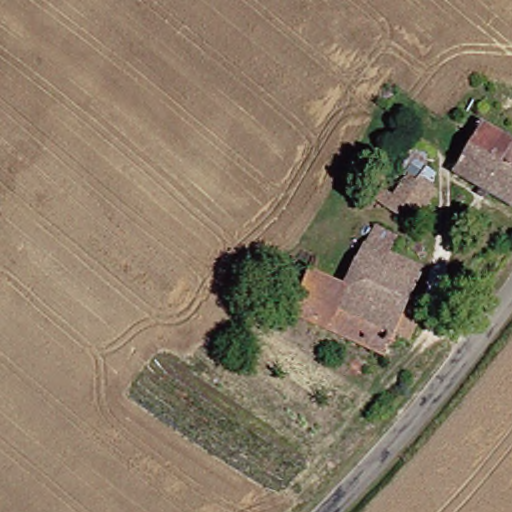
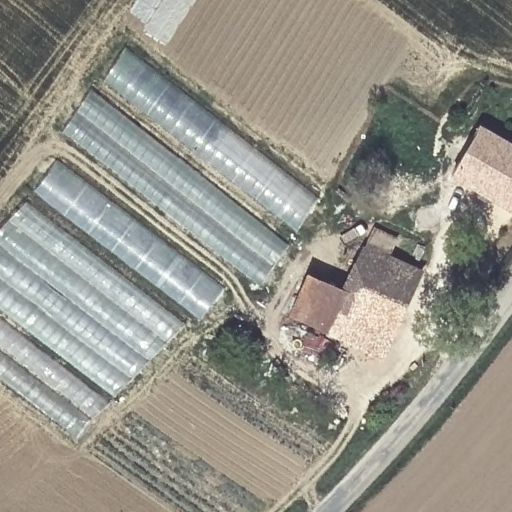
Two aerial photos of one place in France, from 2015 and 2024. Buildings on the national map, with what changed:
new [(300,231),(106,79),(128,47),(321,197),(300,231)]
new [(263,285),(63,130),(93,87),(292,245),(263,285)]
unchanged [(460,171),(488,125),(512,138),(512,201),(460,171)]
demolished [(412,204),(402,216),(391,207),(411,180),(402,174),(424,145),(444,160),(428,180),(442,191),(426,215),(412,204)]
new [(201,318),(34,190),(58,157),(226,286),(201,318)]
new [(0,305),(0,229),(27,200),(188,325),(117,395),(0,305)]
unchanged [(333,332),(348,295),(377,229),(402,240),(396,253),(431,268),(412,307),(426,314),(416,339),(400,334),(389,356),(333,332)]
unchanged [(333,332),(297,315),(313,278),(348,295),(333,332)]
new [(0,375),(0,317),(113,403),(78,436),(0,375)]

